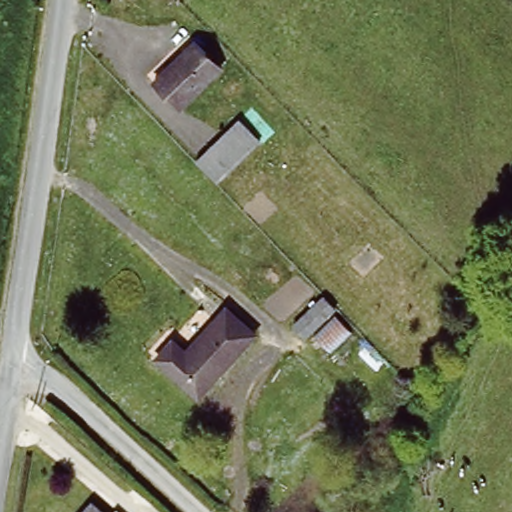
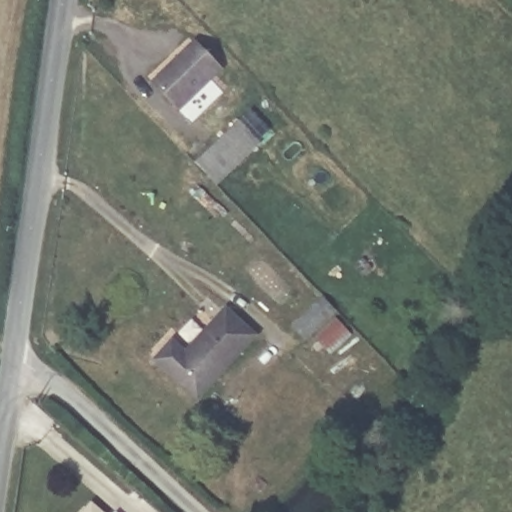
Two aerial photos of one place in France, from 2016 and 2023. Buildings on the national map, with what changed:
unchanged [(193,41),(216,67),(175,106),(151,80),(193,41)]
unchanged [(238,121),(261,144),(214,189),(192,166),(238,121)]
unchanged [(316,296),(329,310),(296,339),(283,325),(316,296)]
unchanged [(226,316),(251,342),(188,399),(150,358),(170,339),(184,353),(226,316)]
unchanged [(328,317),(343,334),(323,353),(308,335),(328,317)]
unchanged [(79,512),(82,509),(86,512),(79,512)]

